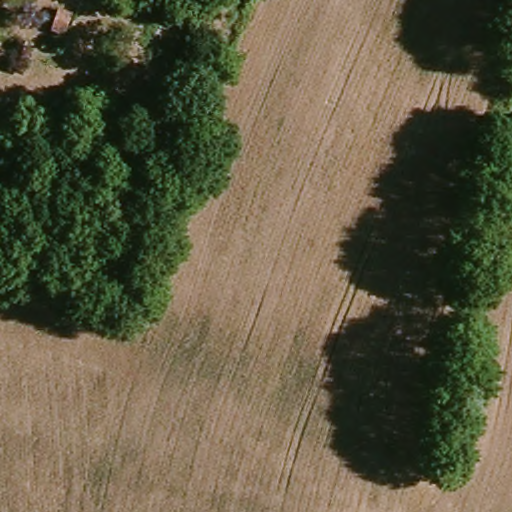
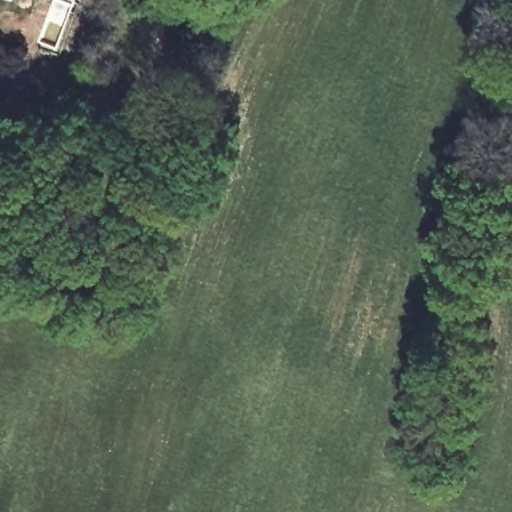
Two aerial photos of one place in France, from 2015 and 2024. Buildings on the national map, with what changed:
unchanged [(71,19),(61,41),(43,35),(52,10),(71,19)]

